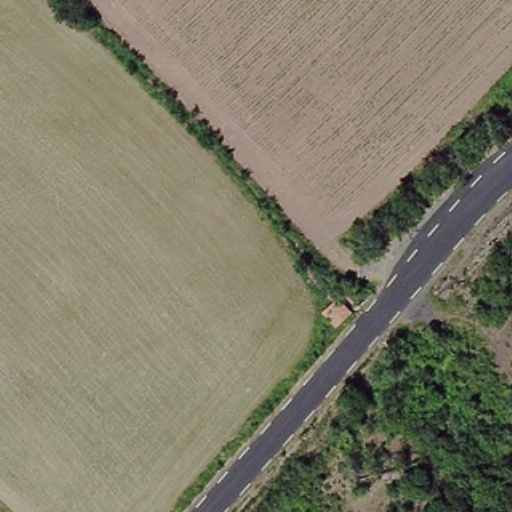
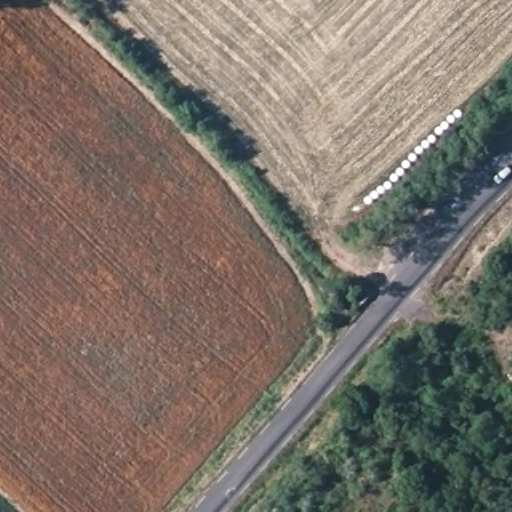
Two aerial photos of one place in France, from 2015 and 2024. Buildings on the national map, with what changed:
unchanged [(345,320),(338,326),(325,311),(332,302),(345,320)]

